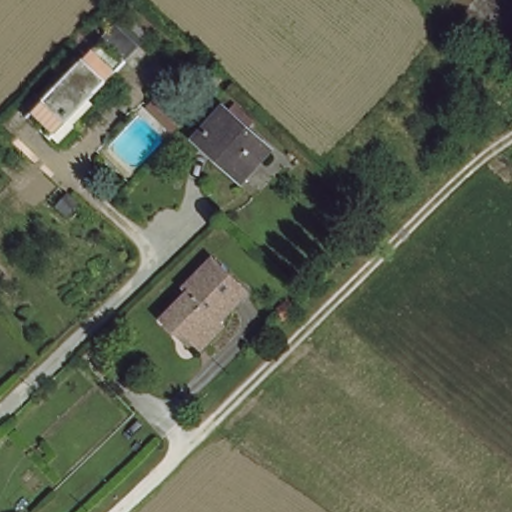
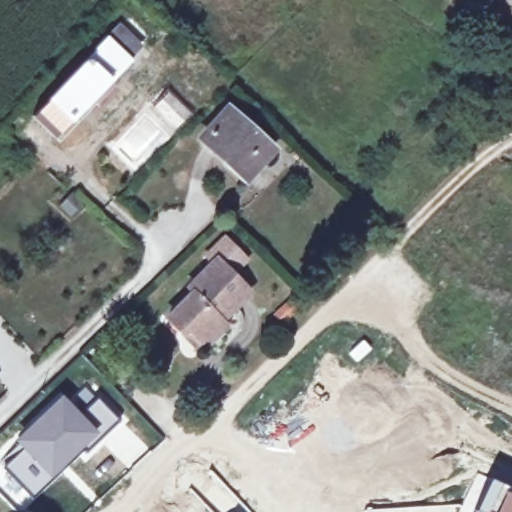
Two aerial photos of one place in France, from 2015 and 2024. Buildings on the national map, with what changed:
unchanged [(112,31),(135,52),(60,131),(38,110),(112,31)]
unchanged [(149,106),(165,88),(187,109),(172,126),(149,106)]
unchanged [(202,140),(228,112),(269,150),(243,177),(202,140)]
unchanged [(190,330),(187,334),(168,320),(192,293),(187,290),(216,261),(244,286),(216,316),(224,322),(205,343),(190,330)]
new [(60,392),(68,400),(84,385),(116,417),(70,457),(49,477),(18,447),(13,442),(60,392)]
new [(18,447),(49,477),(32,495),(1,464),(18,447)]
new [(512,489),(512,512),(470,512),(485,476),(512,489)]

